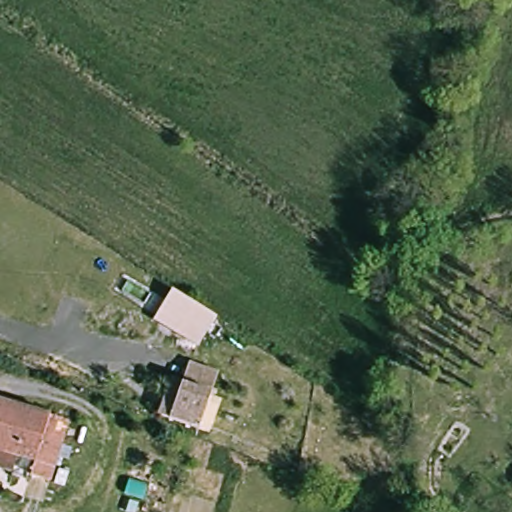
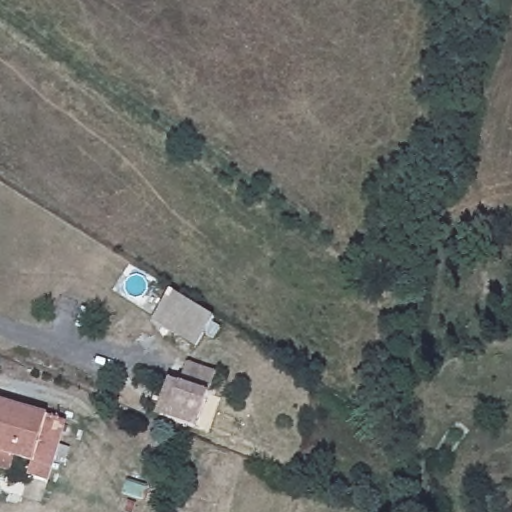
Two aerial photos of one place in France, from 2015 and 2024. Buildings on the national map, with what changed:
unchanged [(185,302),(213,320),(195,349),(150,321),(168,291),(185,302)]
unchanged [(220,373),(199,430),(160,414),(171,379),(183,383),(190,364),(220,373)]
unchanged [(0,462),(0,401),(65,418),(47,481),(30,476),(35,455),(17,450),(12,465),(0,462)]

